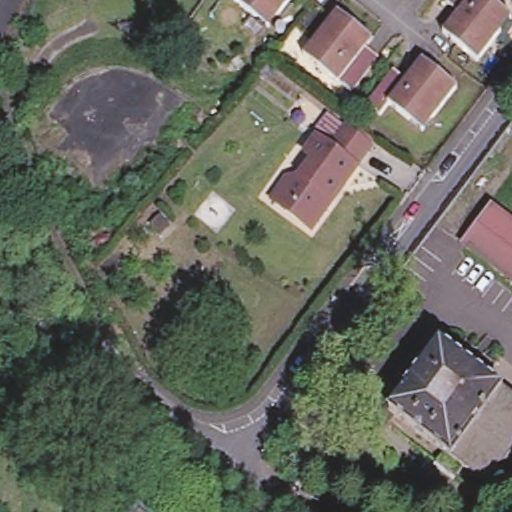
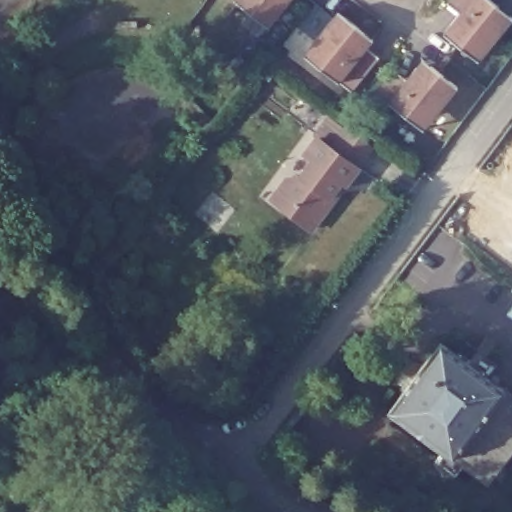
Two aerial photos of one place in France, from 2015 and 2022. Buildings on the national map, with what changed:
unchanged [(230,0),(291,0),(277,17),(268,30),(253,19),(232,2),(230,0)]
unchanged [(445,6),(451,0),(484,0),(497,9),(511,20),(500,34),(477,63),(451,43),(442,36),(449,28),(457,16),(445,6)]
unchanged [(340,79),(337,81),(317,64),(303,54),(314,39),(337,11),(362,31),(371,38),(365,45),(377,54),(352,89),(340,79)]
unchanged [(389,106),(380,118),(366,107),(392,73),(405,82),(415,70),(422,61),(432,71),(456,89),(434,119),(423,133),(408,121),(389,106)]
unchanged [(290,180),(283,175),(303,149),(309,154),(320,140),(317,138),(330,119),(347,130),(374,151),(360,170),(348,188),(344,184),(332,200),(336,204),(314,233),(294,216),(275,200),(280,193),(290,180)]
demolished [(512,225),(512,280),(460,240),(487,206),(512,225)]
unchanged [(512,391),(512,448),(487,479),(390,405),(442,338),(512,391)]

